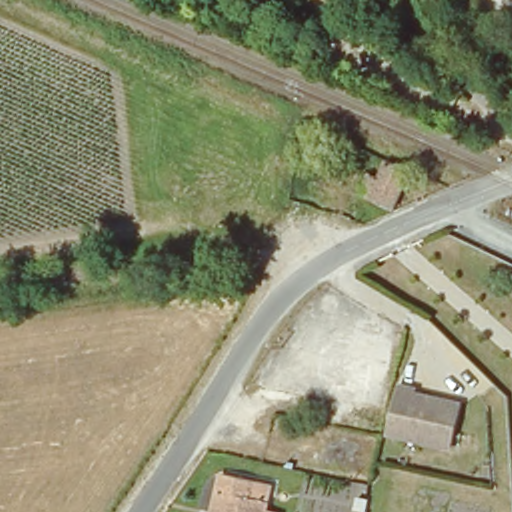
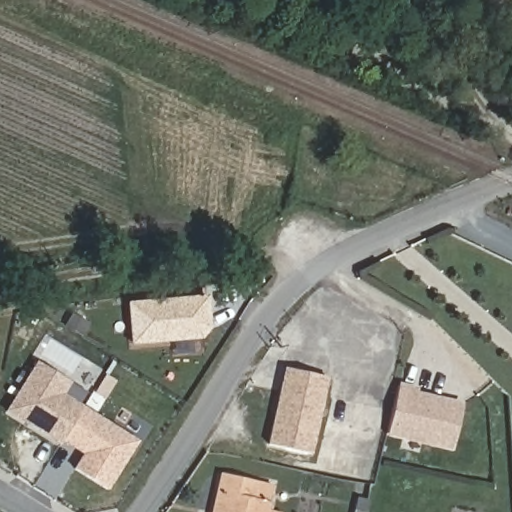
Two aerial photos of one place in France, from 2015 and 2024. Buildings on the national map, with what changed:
demolished [(363,196),(370,178),(380,182),(389,163),(411,172),(395,209),(363,196)]
new [(201,298),(205,328),(196,338),(128,345),(125,306),(201,298)]
new [(40,368),(71,388),(64,400),(80,411),(60,443),(10,416),(40,368)]
new [(284,368),(330,378),(312,455),(267,445),(284,368)]
unchanged [(417,388),(415,394),(462,404),(455,446),(388,434),(399,385),(417,388)]
new [(60,443),(80,411),(134,443),(105,491),(72,471),(81,457),(76,454),(60,443)]
unchanged [(212,493),(216,475),(263,484),(280,487),(277,506),(276,511),(291,512),(215,512),(218,494),(212,493)]

